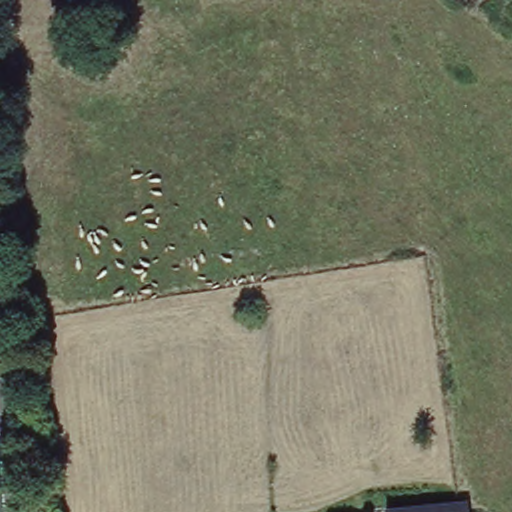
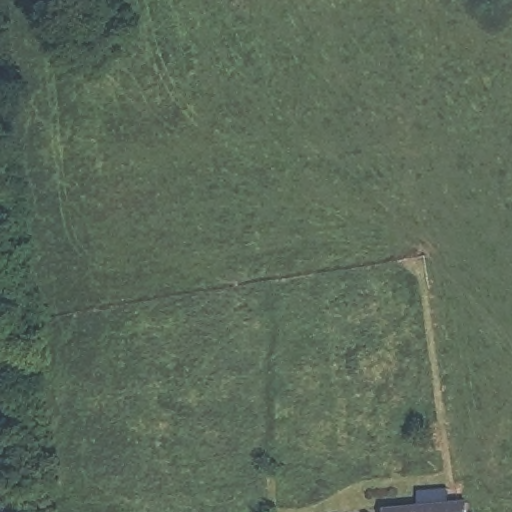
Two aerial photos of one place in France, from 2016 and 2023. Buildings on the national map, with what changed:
unchanged [(466,497),(470,512),(389,512),(388,508),(460,496),(466,497)]

